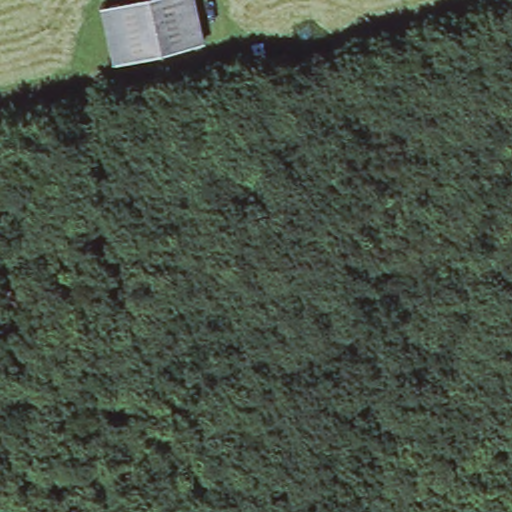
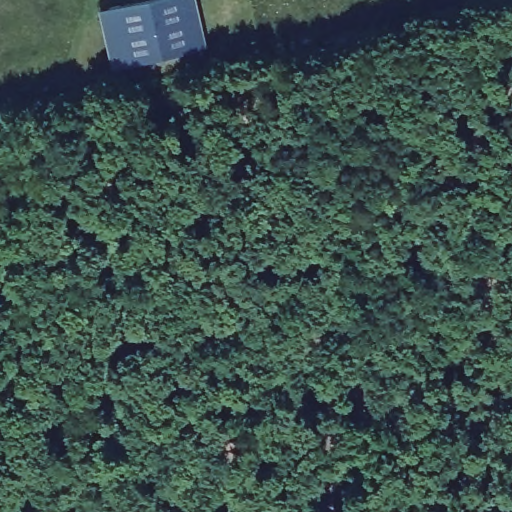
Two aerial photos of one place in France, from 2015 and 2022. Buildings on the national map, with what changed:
unchanged [(111,10),(154,0),(190,0),(194,14),(202,46),(124,65),(116,31),(111,10)]

